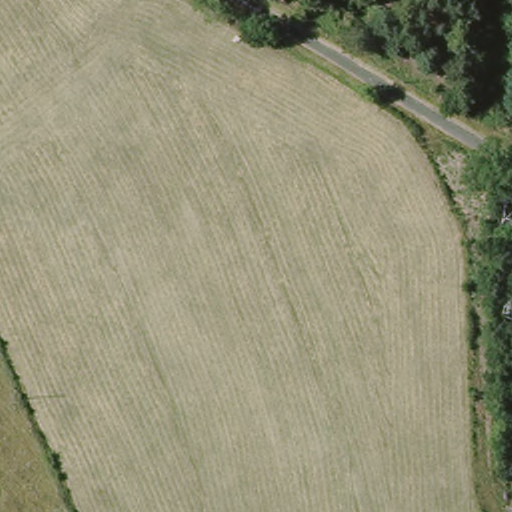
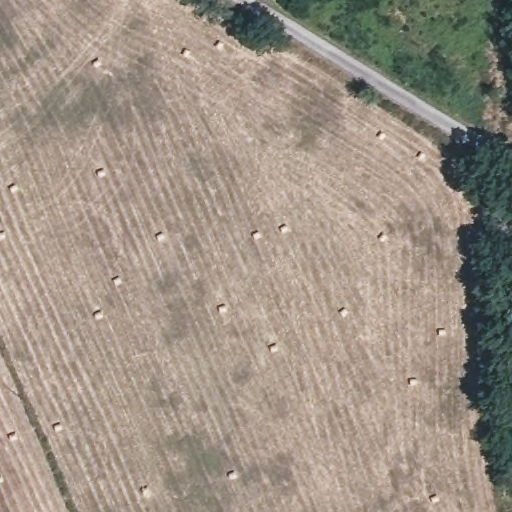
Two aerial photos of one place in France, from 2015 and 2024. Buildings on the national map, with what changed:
[]

